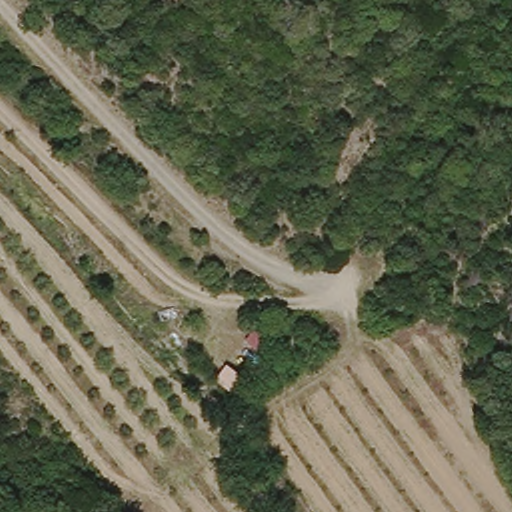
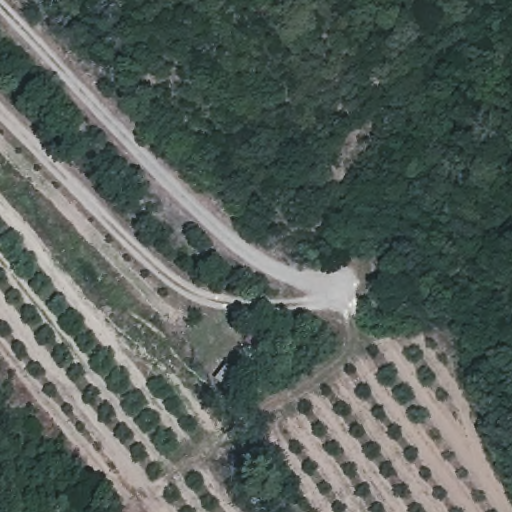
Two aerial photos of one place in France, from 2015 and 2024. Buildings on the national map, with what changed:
unchanged [(219,371),(232,359),(250,379),(238,392),(219,371)]

